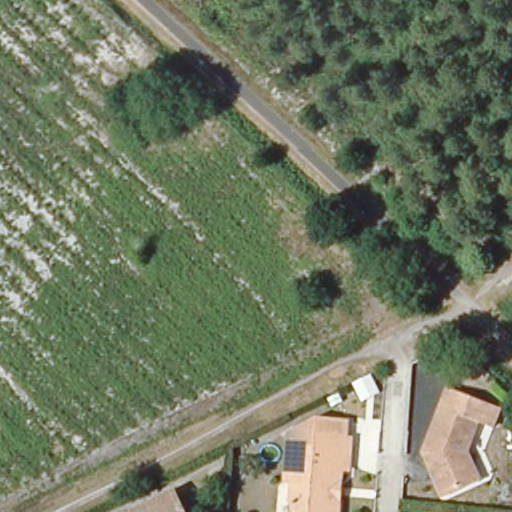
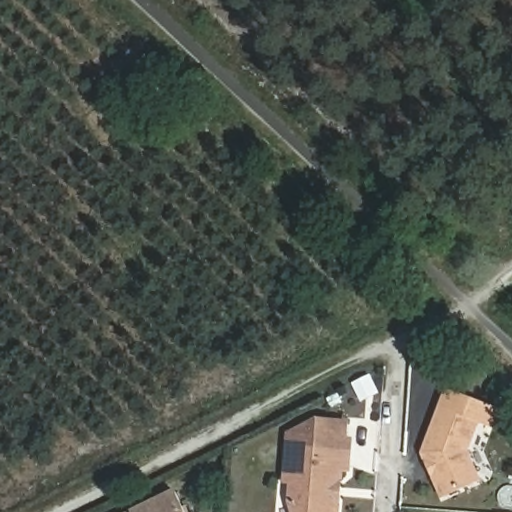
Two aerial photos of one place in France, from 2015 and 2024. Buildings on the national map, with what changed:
unchanged [(369,386),(377,402),(361,410),(353,395),(369,386)]
unchanged [(494,427),(478,421),(467,452),(479,480),(443,496),(434,476),(436,471),(432,462),(427,460),(424,453),(442,407),(447,410),(453,393),(500,410),(494,427)]
unchanged [(329,437),(347,438),(345,456),(350,456),(349,467),(289,463),(289,453),(329,437)]
unchanged [(348,485),(342,485),(341,497),(337,497),(336,510),(339,510),(339,512),(291,512),(293,497),(286,497),(289,463),(349,467),(348,485)]
unchanged [(184,512),(136,512),(175,493),(184,512)]

